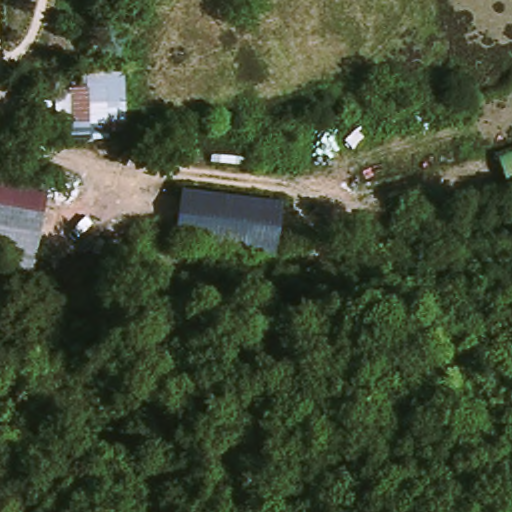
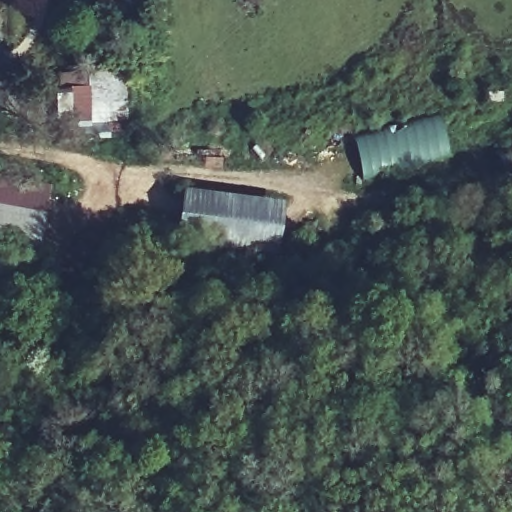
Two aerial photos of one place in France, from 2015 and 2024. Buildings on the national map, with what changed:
unchanged [(123,132),(69,132),(67,75),(120,72),(123,132)]
new [(450,160),(362,180),(353,139),(442,119),(450,160)]
unchanged [(512,195),(508,197),(494,152),(512,145),(512,195)]
unchanged [(30,181),(45,184),(33,260),(31,274),(0,271),(0,177),(30,181)]
unchanged [(272,252),(173,240),(179,192),(279,202),(272,252)]

